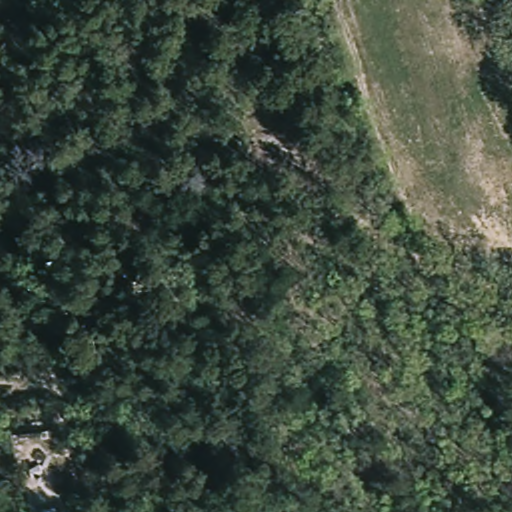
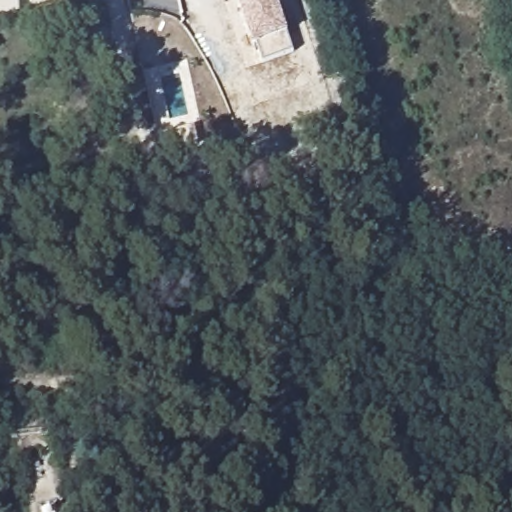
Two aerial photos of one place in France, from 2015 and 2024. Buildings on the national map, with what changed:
new [(259,59),(253,40),(251,41),(237,0),(273,0),(290,49),(259,59)]

